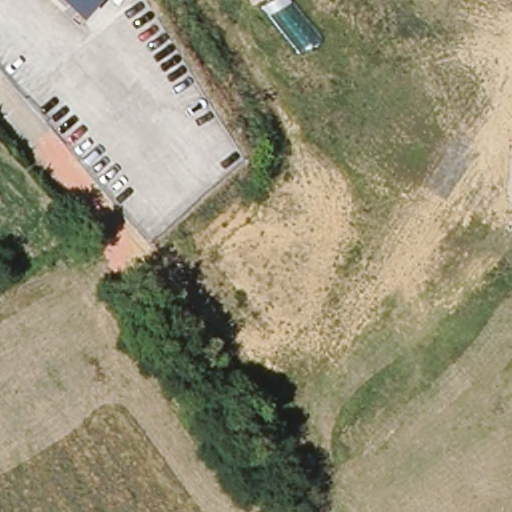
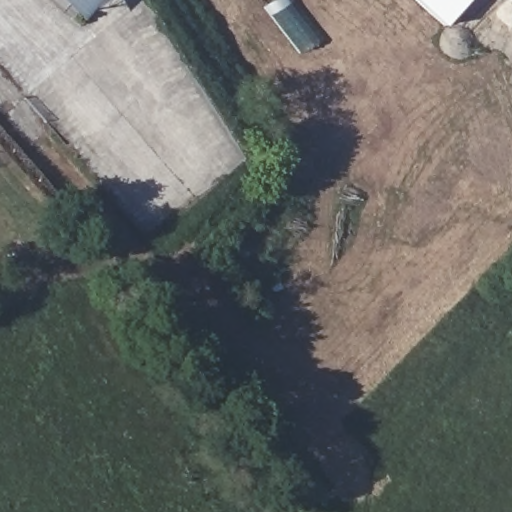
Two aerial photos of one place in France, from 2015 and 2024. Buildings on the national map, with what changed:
unchanged [(78,20),(57,0),(96,0),(78,20)]
new [(415,0),(467,0),(443,26),(415,0)]

